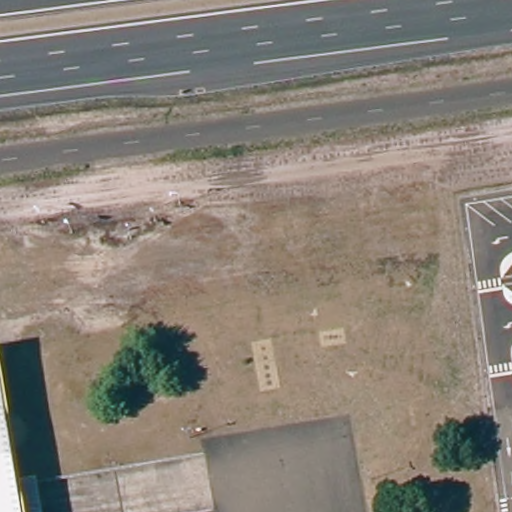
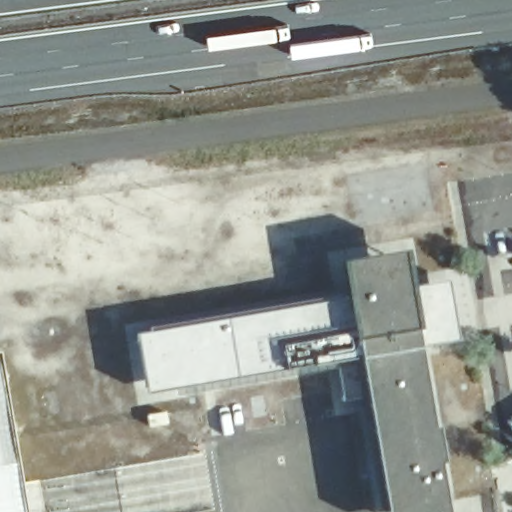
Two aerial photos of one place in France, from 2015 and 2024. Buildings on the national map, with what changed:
new [(338,294),(339,299),(349,295),(343,259),(403,250),(409,285),(448,279),(458,340),(419,346),(432,424),(437,423),(444,461),(438,463),(448,512),(387,512),(386,509),(378,511),(359,395),(344,399),(338,362),(148,392),(138,334),(152,332),(151,326),(338,294)]
unchanged [(20,512),(0,512),(0,396),(20,512)]

